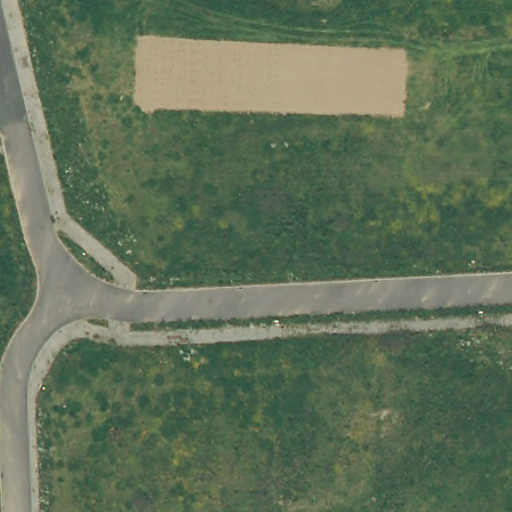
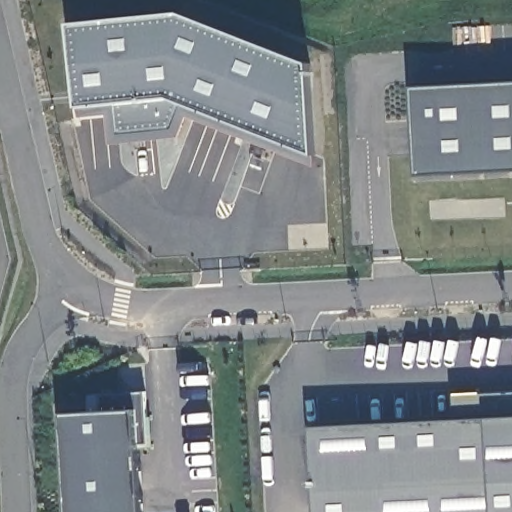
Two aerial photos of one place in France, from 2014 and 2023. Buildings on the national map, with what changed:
new [(179,14),(310,64),(314,156),(316,168),(186,118),(178,137),(110,146),(106,116),(81,118),(79,106),(72,24),(179,14)]
new [(512,172),(417,176),(414,90),(512,84),(512,172)]
new [(102,413),(102,396),(144,392),(147,444),(136,446),(141,512),(69,512),(64,417),(102,413)]
new [(455,421),(456,395),(512,393),(512,512),(315,512),(309,429),(455,421)]

